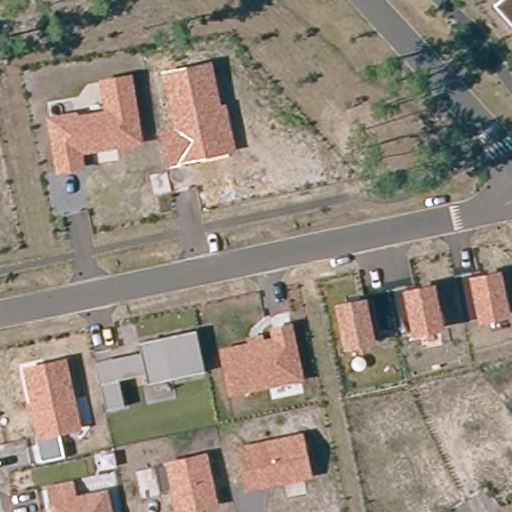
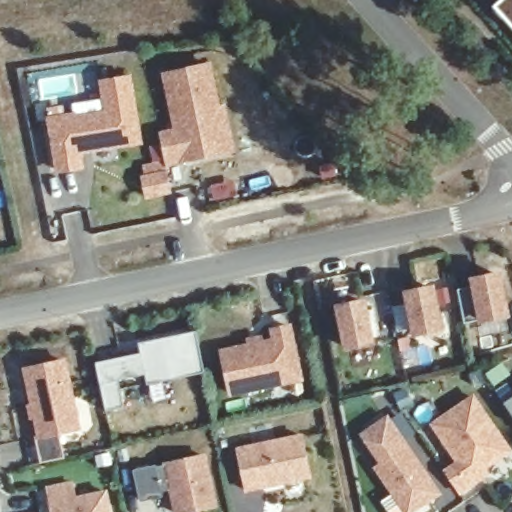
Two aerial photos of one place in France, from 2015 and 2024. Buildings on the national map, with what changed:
unchanged [(499,0),(512,0),(512,26),(493,5),(499,0)]
unchanged [(166,166),(159,130),(173,127),(161,72),(212,62),(221,105),(227,104),(236,151),(166,166)]
unchanged [(55,174),(47,114),(77,109),(78,113),(103,110),(98,80),(132,75),(143,145),(83,154),(85,169),(55,174)]
unchanged [(467,277),(501,270),(510,318),(477,324),(467,277)]
unchanged [(401,290),(435,283),(444,330),(410,336),(401,290)]
unchanged [(333,304),(366,298),(374,346),(342,351),(333,304)]
unchanged [(218,348),(271,338),(269,328),(292,324),(304,381),(228,396),(218,348)]
unchanged [(148,385),(145,374),(119,380),(125,408),(107,412),(96,362),(141,353),(139,343),(196,331),(204,372),(148,385)]
unchanged [(81,430),(61,434),(66,459),(41,464),(22,368),(67,358),(81,430)]
new [(461,494),(443,467),(454,460),(431,422),(474,391),(512,446),(512,452),(485,468),(490,474),(461,494)]
unchanged [(512,398),(512,412),(505,403),(512,398)]
new [(442,493),(415,512),(405,512),(374,468),(380,464),(365,440),(361,432),(388,414),(442,493)]
unchanged [(236,447),(302,434),(312,478),(245,491),(236,447)]
unchanged [(208,453),(218,508),(200,512),(173,512),(162,462),(208,453)]
unchanged [(74,480),(77,495),(108,489),(112,512),(51,512),(45,485),(74,480)]

